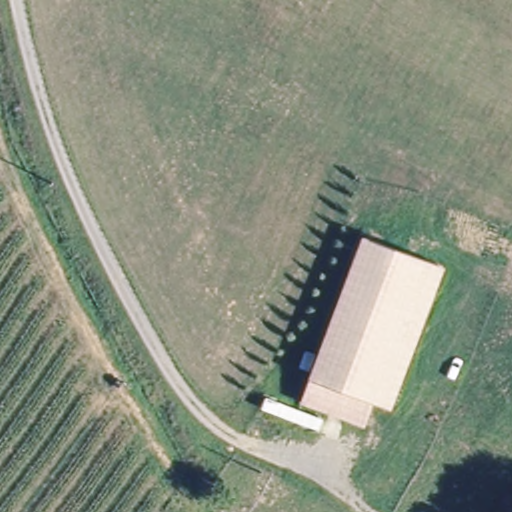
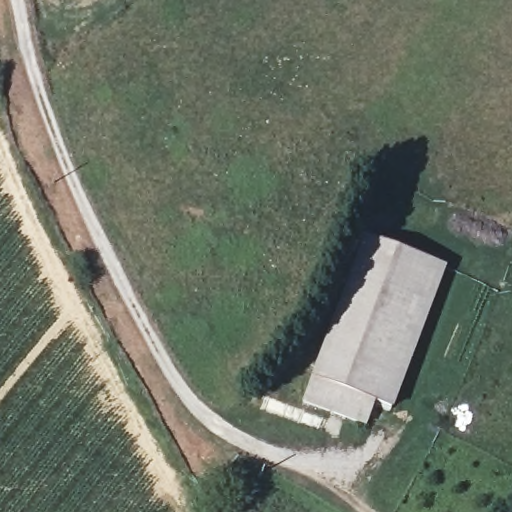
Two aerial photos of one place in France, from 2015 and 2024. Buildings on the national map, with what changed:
unchanged [(310,378),(363,238),(445,268),(392,411),(374,403),(365,427),(301,404),(310,378)]

